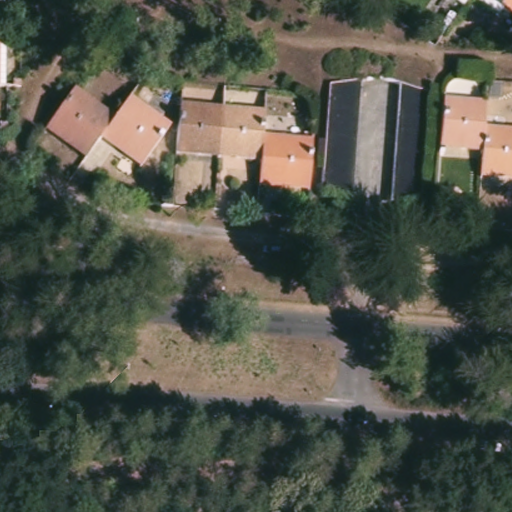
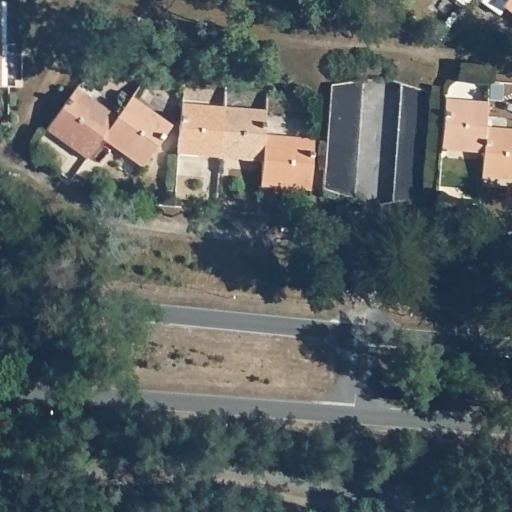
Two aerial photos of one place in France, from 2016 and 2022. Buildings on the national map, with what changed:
unchanged [(16,5),(9,0),(20,0),(16,5)]
unchanged [(464,4),(459,0),(467,0),(464,4)]
unchanged [(502,3),(498,0),(512,0),(512,18),(498,8),(502,3)]
unchanged [(321,180),(322,167),(323,154),(324,143),(324,142),(325,129),(326,117),(326,107),(326,106),(327,90),(347,88),(361,86),(359,108),(358,119),(358,131),(357,144),(356,156),(355,170),(354,180),(354,182),(352,204),(340,201),(320,196),(321,180)]
unchanged [(397,184),(398,171),(399,159),(400,146),(400,134),(401,121),(402,108),(404,88),(435,97),(434,111),(433,124),(432,137),(432,147),(431,148),(430,162),(430,173),(429,186),(427,203),(411,205),(395,207),(397,184)]
unchanged [(90,100),(94,99),(97,99),(99,100),(101,103),(100,107),(116,118),(109,127),(108,129),(105,134),(95,148),(83,140),(81,142),(67,133),(69,130),(54,119),(57,114),(62,108),(75,89),(90,100)]
unchanged [(129,99),(130,98),(147,110),(152,109),(154,109),(156,111),(157,113),(156,116),(171,127),(150,156),(134,144),(130,148),(128,147),(124,144),(119,140),(117,138),(117,136),(118,134),(109,127),(116,118),(129,99)]
unchanged [(208,156),(207,159),(191,159),(191,155),(176,153),(178,118),(196,120),(197,117),(200,115),(202,115),(204,115),(206,117),(207,118),(208,121),(221,122),(220,137),(219,157),(208,156)]
unchanged [(459,120),(462,117),(463,116),(466,115),(468,117),(469,118),(470,120),(484,121),(483,135),(483,145),(482,159),(470,156),(467,160),(458,158),(458,156),(439,155),(442,118),(459,120)]
unchanged [(220,137),(221,122),(235,123),(237,119),(239,118),(240,118),(243,118),(245,120),(246,122),(246,123),(263,125),(262,145),(262,148),(261,160),(244,160),(241,164),(228,162),(227,161),(226,158),(219,157),(220,137)]
unchanged [(503,144),(505,142),(508,142),(509,143),(510,145),(511,147),(512,147),(512,187),(497,187),(496,184),(480,182),(480,176),(482,159),(483,145),(502,146),(503,144)]
unchanged [(282,151),(287,146),(292,147),(294,151),(312,153),(309,189),(291,188),(287,192),(272,190),(271,186),(259,186),(259,183),(259,179),(261,160),(262,148),(282,151)]

